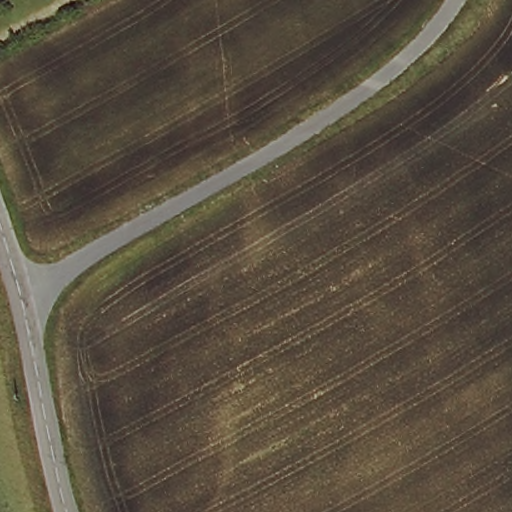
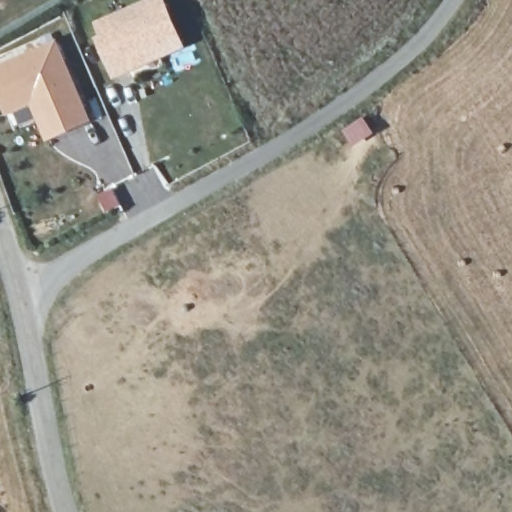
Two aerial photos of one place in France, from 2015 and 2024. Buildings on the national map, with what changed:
new [(91,21),(142,0),(163,0),(184,48),(110,78),(93,38),(97,35),(91,21)]
new [(57,39),(89,120),(46,141),(29,105),(5,115),(0,105),(0,65),(57,39)]

